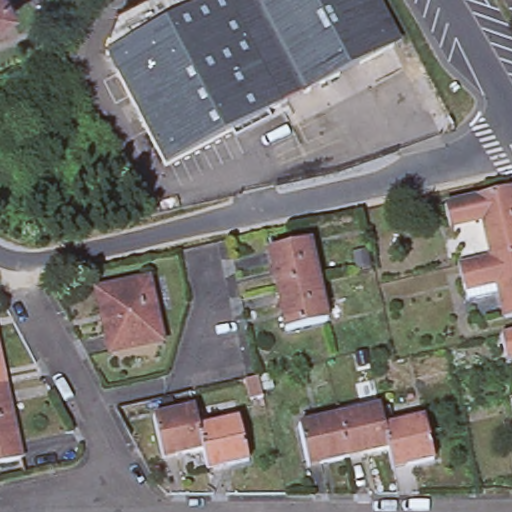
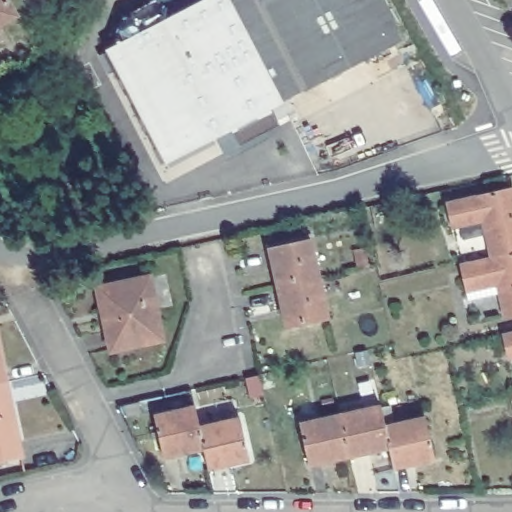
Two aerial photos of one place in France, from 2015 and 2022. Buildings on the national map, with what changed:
unchanged [(14,0),(22,13),(0,26),(0,0),(14,0)]
unchanged [(149,0),(199,0),(107,50),(96,29),(149,0)]
unchanged [(107,50),(199,0),(225,0),(280,102),(165,164),(107,50)]
unchanged [(280,102),(225,0),(258,0),(305,88),(289,97),(280,102)]
unchanged [(305,88),(258,0),(371,0),(392,41),(305,88)]
unchanged [(512,184),(512,247),(498,250),(489,210),(454,217),(450,196),(512,184)]
unchanged [(310,240),(320,280),(277,291),(267,251),(310,240)]
unchanged [(502,271),(467,279),(462,258),(498,250),(512,247),(512,315),(502,271)]
unchanged [(102,287),(152,277),(163,338),(145,342),(117,349),(102,287)]
unchanged [(320,280),(329,319),(287,328),(277,291),(320,280)]
unchanged [(512,332),(512,344),(509,332),(512,332)]
unchanged [(10,378),(0,381),(0,333),(10,378)]
unchanged [(10,378),(26,453),(0,459),(0,381),(10,378)]
unchanged [(163,447),(154,408),(195,400),(199,416),(199,418),(200,422),(204,437),(163,447)]
unchanged [(390,449),(349,458),(344,436),(340,416),(380,407),(385,426),(390,449)]
unchanged [(204,437),(200,422),(199,418),(199,416),(240,408),(248,447),(207,455),(204,437)]
unchanged [(312,466),(302,425),(340,416),(344,436),(349,458),(312,466)]
unchanged [(390,449),(385,426),(427,418),(436,458),(394,466),(390,449)]

